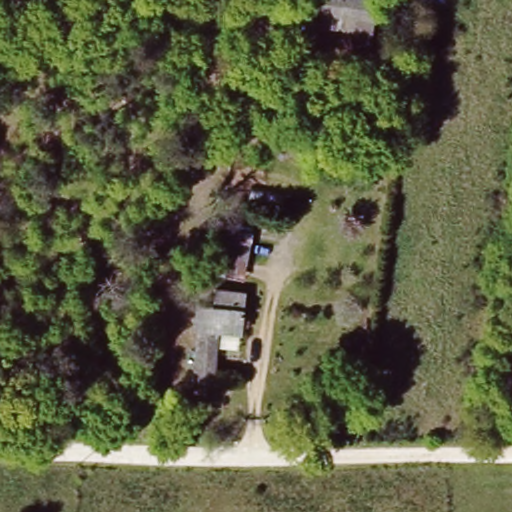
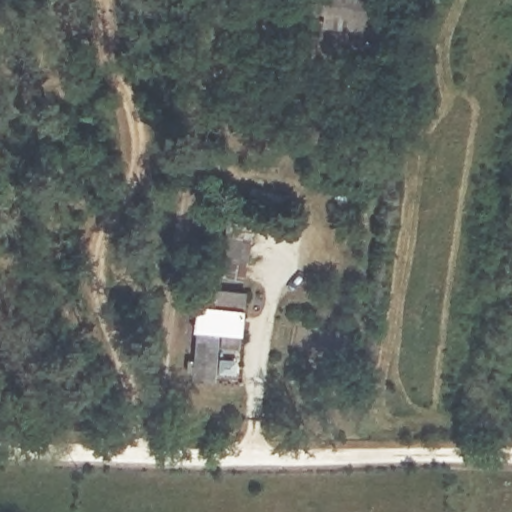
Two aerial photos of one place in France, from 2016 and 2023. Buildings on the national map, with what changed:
unchanged [(374,0),(369,33),(347,30),(349,17),(317,14),(318,0),(374,0)]
unchanged [(248,300),(243,328),(219,325),(211,373),(195,371),(201,324),(197,320),(201,292),(248,300)]
unchanged [(86,422),(68,420),(71,387),(89,388),(86,422)]

